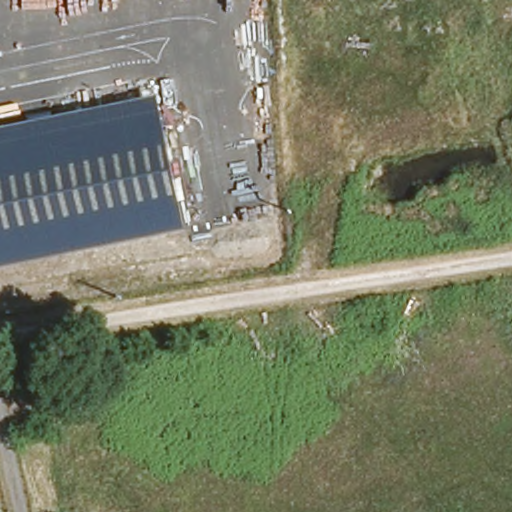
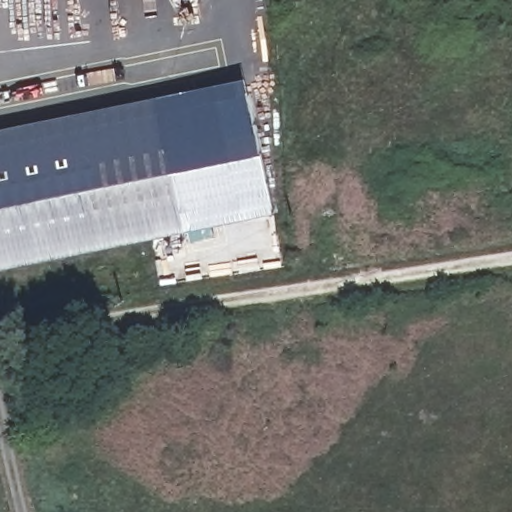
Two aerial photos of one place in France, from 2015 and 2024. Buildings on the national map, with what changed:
new [(186,229),(157,96),(245,77),(274,212),(186,229)]
unchanged [(157,96),(186,229),(0,267),(0,128),(157,96)]

